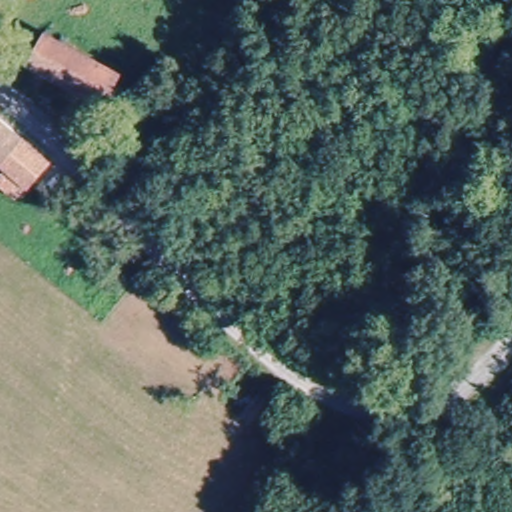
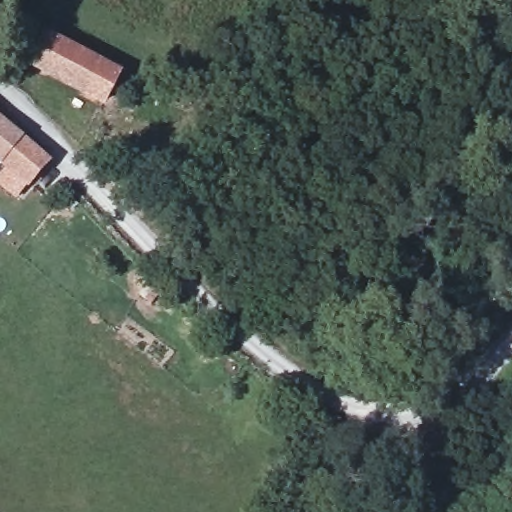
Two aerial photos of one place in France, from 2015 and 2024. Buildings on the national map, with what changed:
unchanged [(116,68),(100,106),(25,66),(41,30),(116,68)]
unchanged [(24,183),(0,163),(0,120),(45,160),(24,183)]

